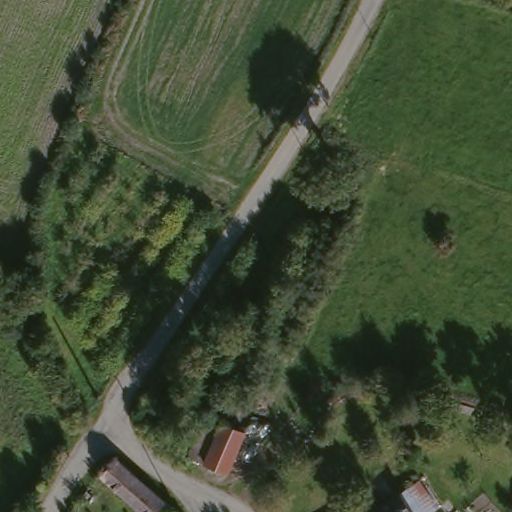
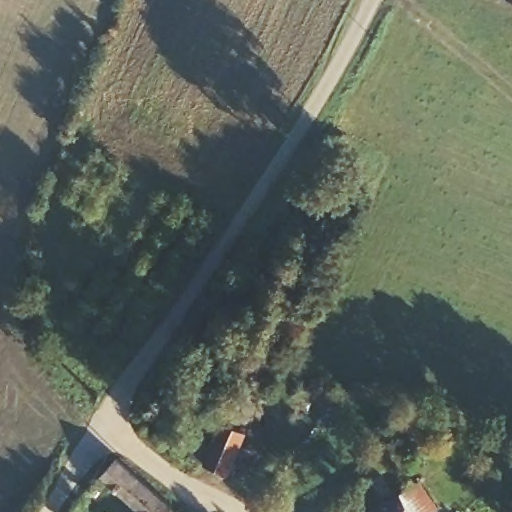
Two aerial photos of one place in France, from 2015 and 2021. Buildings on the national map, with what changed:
unchanged [(249,430),(230,470),(207,460),(227,418),(249,430)]
unchanged [(185,512),(148,512),(106,473),(123,455),(182,508),(185,512)]
unchanged [(439,502),(425,512),(372,512),(392,498),(407,487),(409,490),(423,480),(439,502)]

